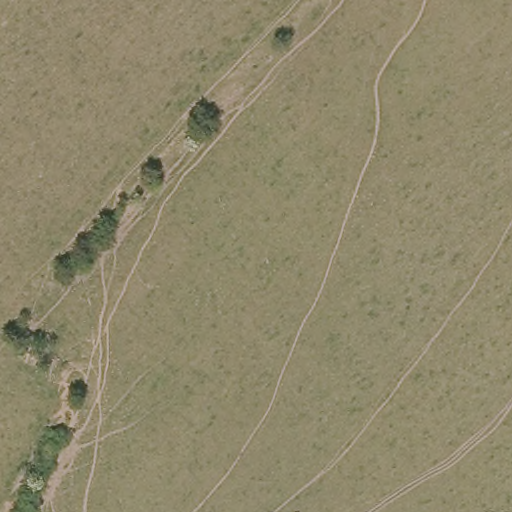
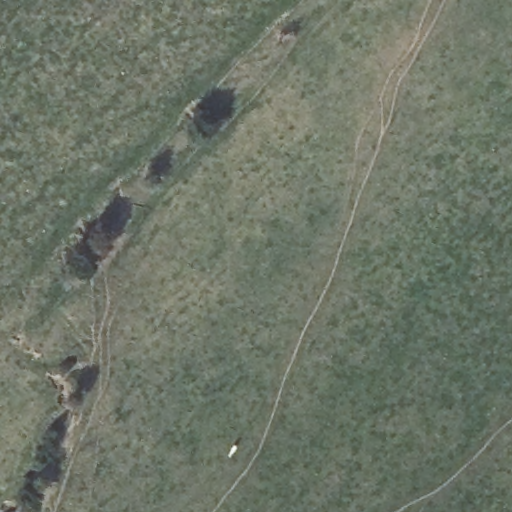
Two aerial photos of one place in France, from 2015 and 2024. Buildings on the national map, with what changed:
[]

